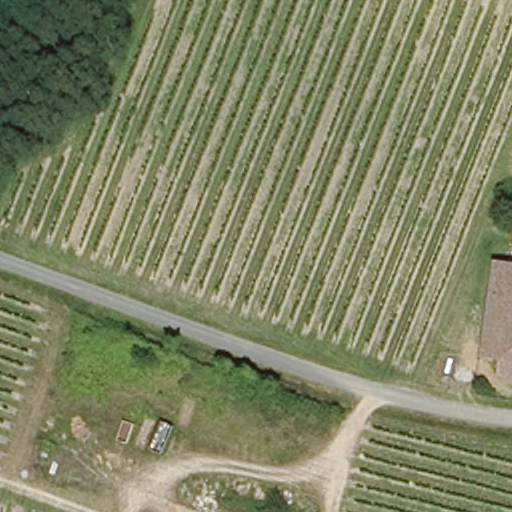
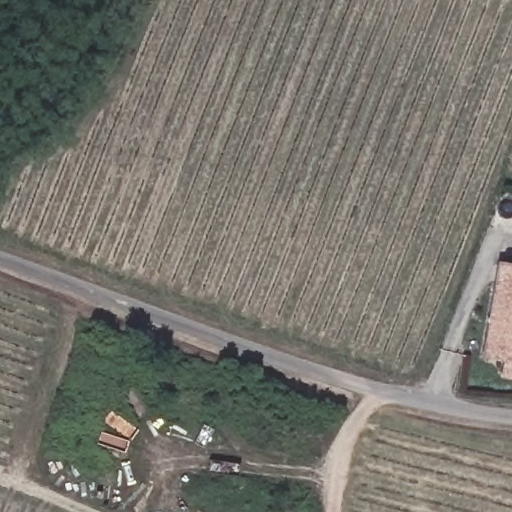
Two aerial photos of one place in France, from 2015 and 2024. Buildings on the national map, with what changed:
unchanged [(502,263),(512,264),(512,377),(503,376),(506,360),(486,356),(502,263)]

